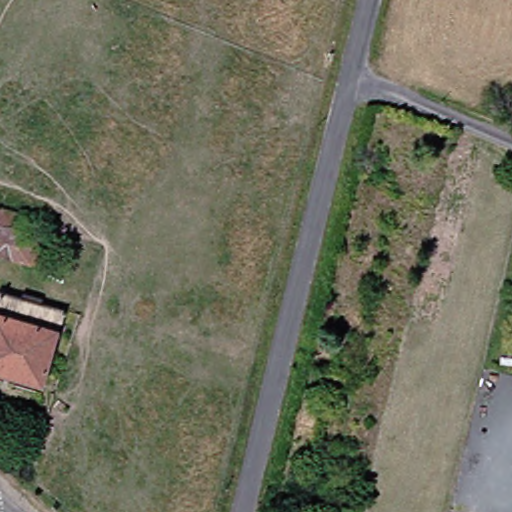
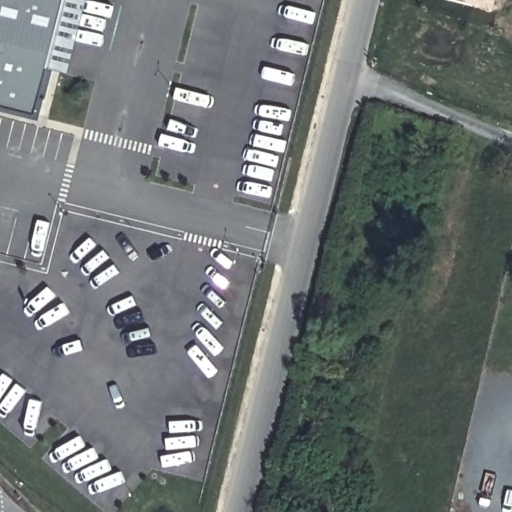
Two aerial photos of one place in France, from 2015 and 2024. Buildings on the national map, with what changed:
new [(34,114),(0,105),(0,0),(65,0),(34,114)]
new [(493,8),(460,0),(496,0),(493,8)]
demolished [(23,217),(19,232),(36,238),(29,263),(0,256),(0,211),(23,217)]
demolished [(55,311),(33,382),(0,372),(0,295),(55,311)]

